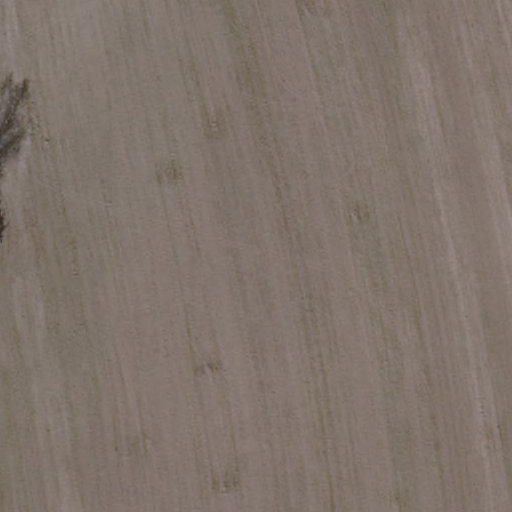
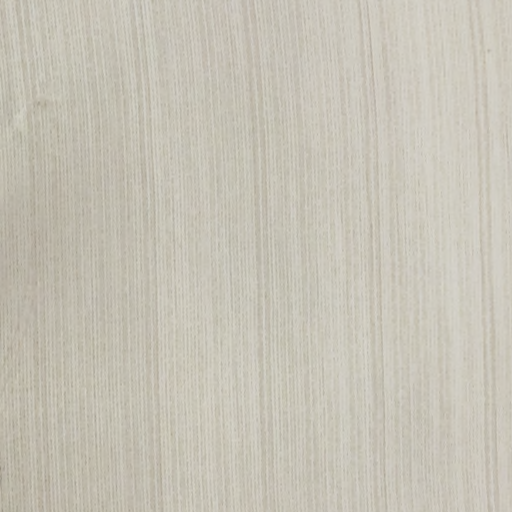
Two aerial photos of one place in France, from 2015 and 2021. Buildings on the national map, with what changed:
[]

